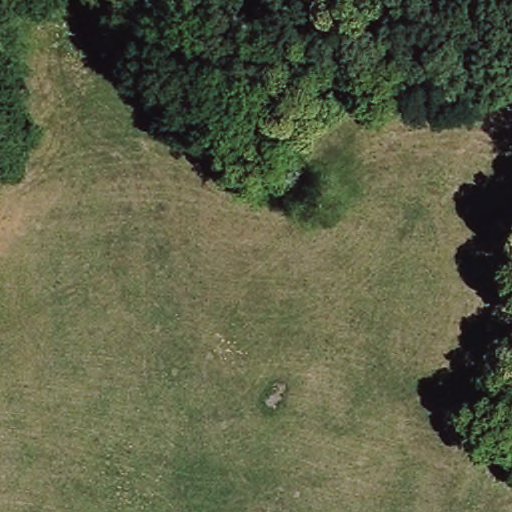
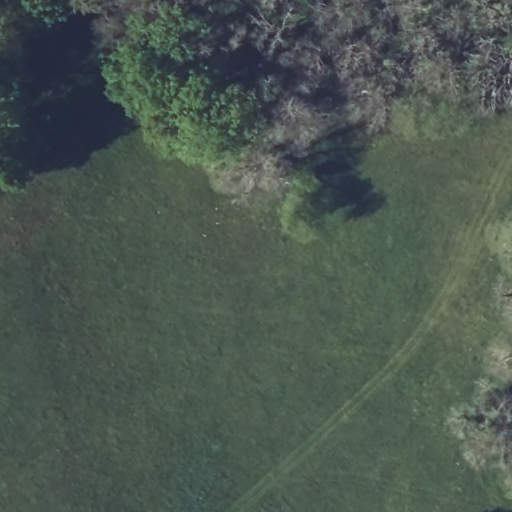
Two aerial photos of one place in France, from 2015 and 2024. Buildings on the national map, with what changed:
unchanged [(469,54),(472,37),(489,39),(485,57),(469,54)]

